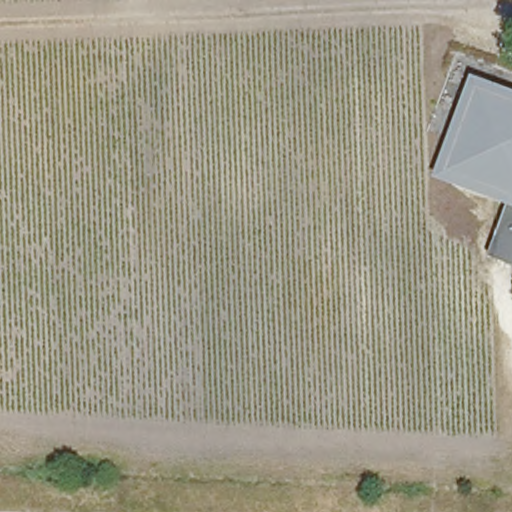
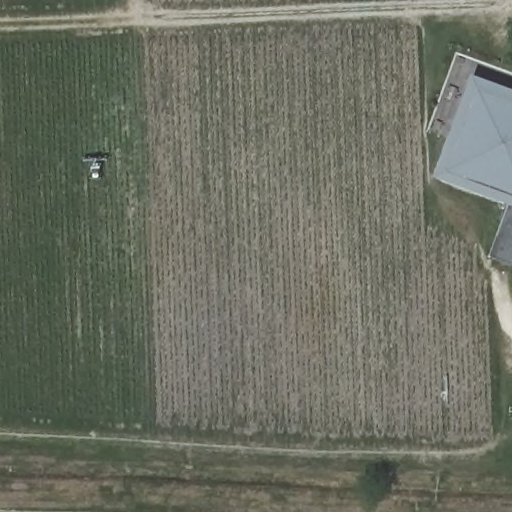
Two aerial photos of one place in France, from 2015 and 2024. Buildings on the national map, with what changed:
unchanged [(512,89),(512,266),(490,259),(508,205),(433,179),(471,75),(512,89)]

